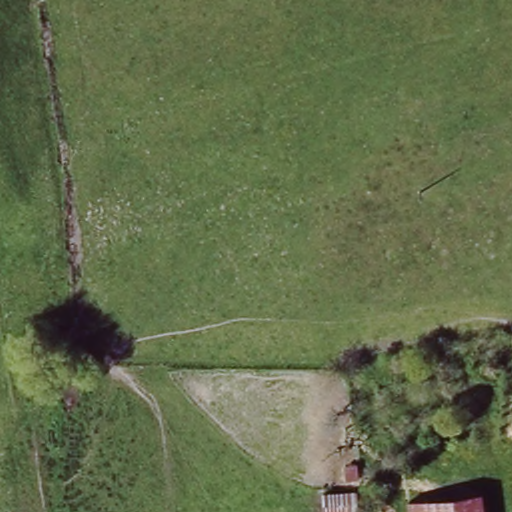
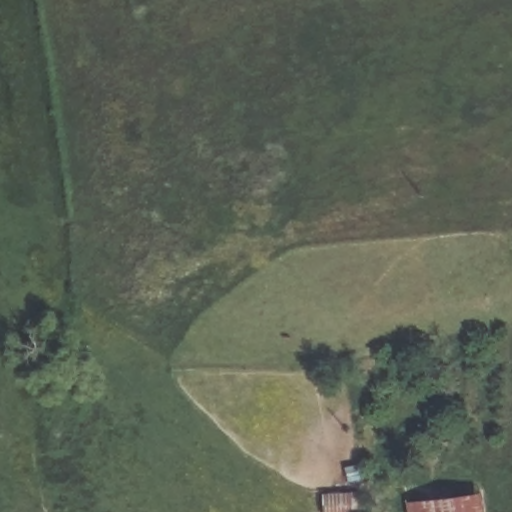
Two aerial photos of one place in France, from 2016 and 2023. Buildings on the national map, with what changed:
unchanged [(412,503),(479,494),(481,512),(414,512),(412,503)]

